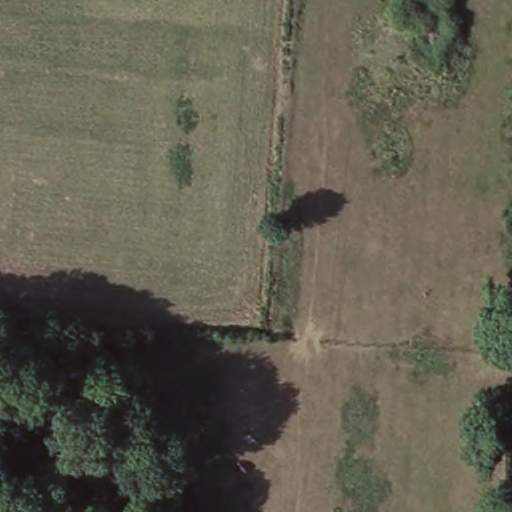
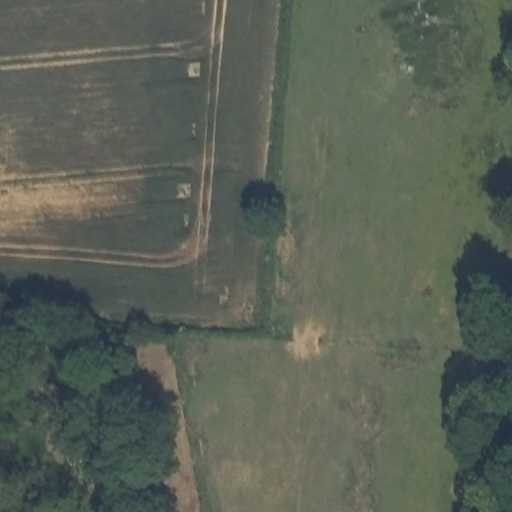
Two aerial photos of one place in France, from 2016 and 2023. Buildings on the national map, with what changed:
[]

